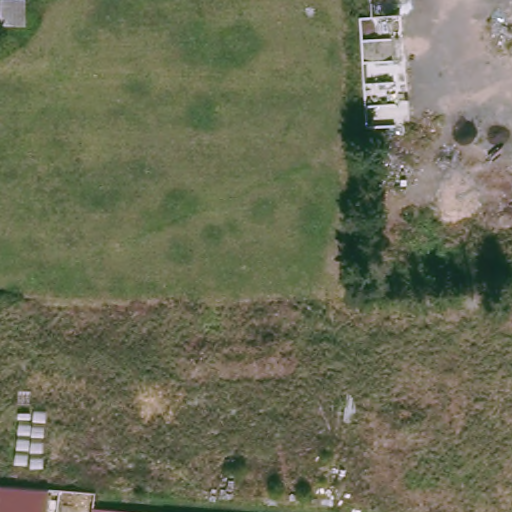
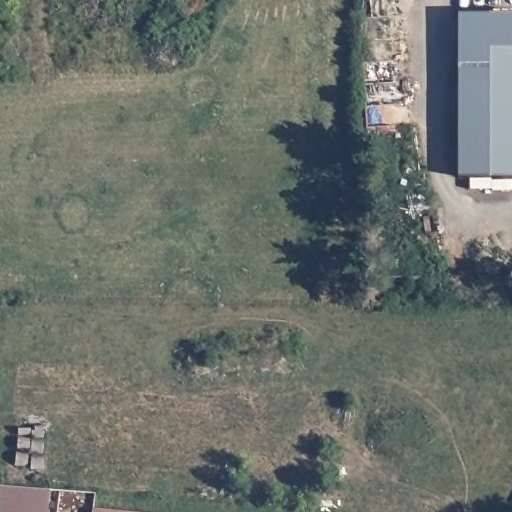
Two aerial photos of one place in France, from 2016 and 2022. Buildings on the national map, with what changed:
unchanged [(0,31),(0,20),(0,8),(22,7),(22,30),(0,31)]
new [(458,12),(512,12),(512,175),(458,174),(458,12)]
demolished [(494,36),(491,20),(512,16),(512,33),(494,36)]
unchanged [(50,512),(0,512),(0,487),(52,490),(50,512)]
unchanged [(93,509),(129,512),(93,512),(93,509)]

